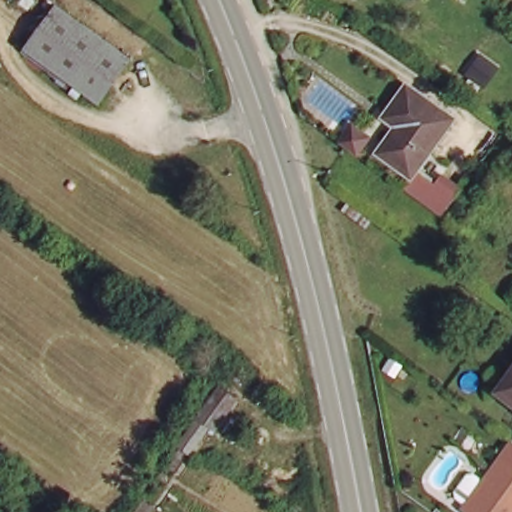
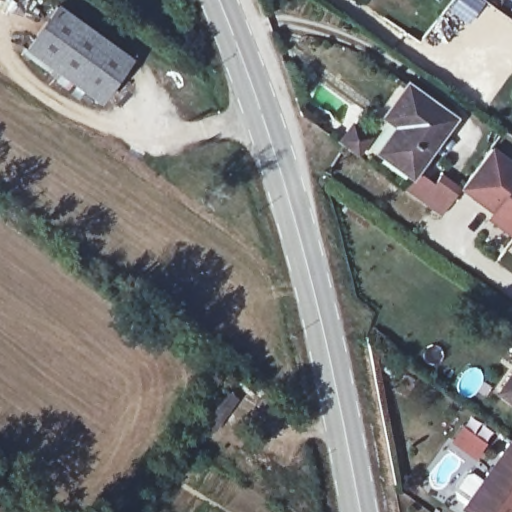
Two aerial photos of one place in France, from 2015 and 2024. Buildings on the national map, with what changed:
unchanged [(55,5),(132,58),(100,100),(26,47),(55,5)]
unchanged [(419,169),(387,144),(402,124),(389,112),(412,81),(458,115),(425,162),(441,174),(447,165),(468,181),(449,209),(411,182),(419,169)]
new [(487,220),(491,214),(460,193),(468,181),(492,147),(512,161),(512,239),(487,220)]
unchanged [(505,389),(512,379),(512,394),(505,389)]
unchanged [(179,445),(200,414),(201,415),(218,388),(232,398),(215,422),(213,422),(190,453),(179,445)]
unchanged [(487,512),(472,502),(507,451),(512,455),(512,512),(487,512)]

